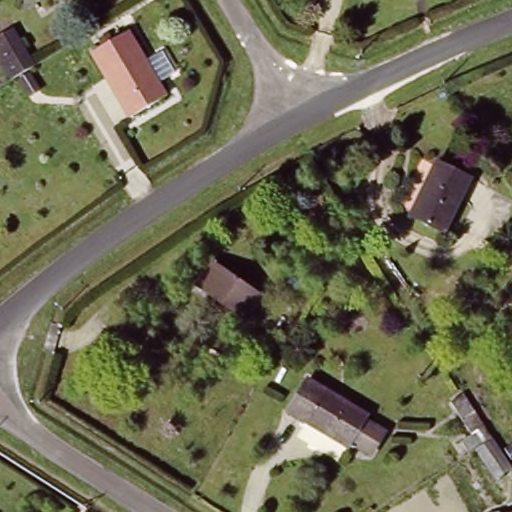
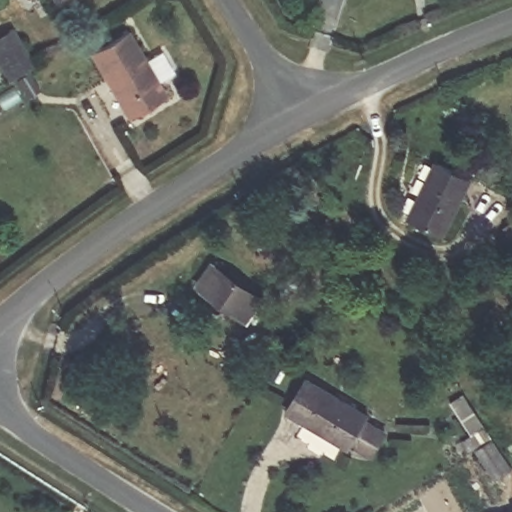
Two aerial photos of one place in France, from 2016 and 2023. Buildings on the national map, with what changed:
unchanged [(0,60),(0,52),(3,50),(0,46),(0,41),(16,30),(37,67),(13,81),(0,60)]
unchanged [(97,54),(132,32),(169,96),(134,117),(97,54)]
unchanged [(17,85),(27,79),(37,95),(27,101),(17,85)]
unchanged [(442,164),(474,180),(447,233),(415,216),(442,164)]
unchanged [(241,316),(229,308),(232,305),(206,286),(194,278),(207,258),(219,267),(257,293),(241,316)]
unchanged [(300,273),(309,280),(300,290),(292,282),(300,273)]
unchanged [(312,380),(372,416),(370,420),(388,431),(374,455),(355,445),(352,448),(326,433),(292,413),(312,380)]
unchanged [(477,455),(469,442),(478,436),(457,405),(470,397),(498,441),(512,463),(512,474),(502,481),(482,451),(477,455)]
unchanged [(503,512),(498,512),(503,510),(503,512)]

